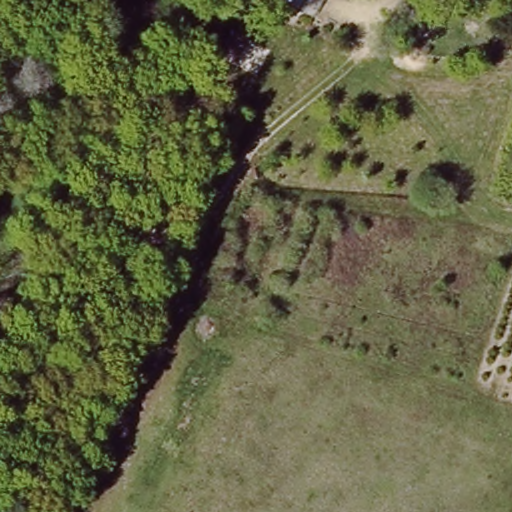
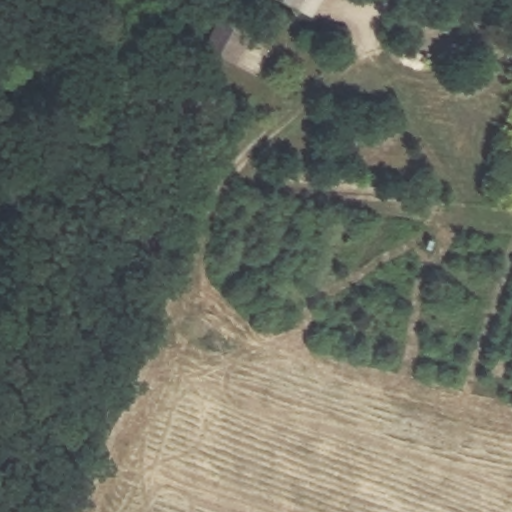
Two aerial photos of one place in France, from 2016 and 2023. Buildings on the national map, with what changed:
unchanged [(297,7),(284,0),(302,0),(297,7)]

